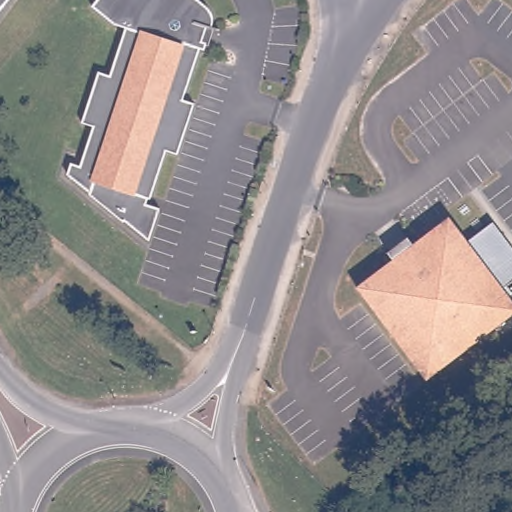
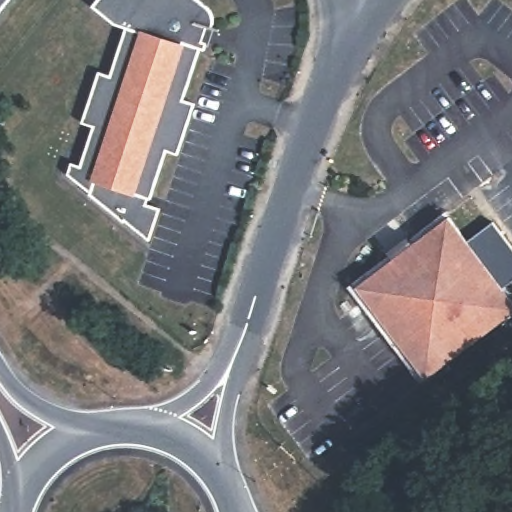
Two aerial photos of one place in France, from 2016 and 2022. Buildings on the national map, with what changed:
unchanged [(0,18),(0,0),(14,0),(0,18)]
unchanged [(121,35),(112,31),(100,22),(89,12),(99,0),(189,0),(207,14),(212,27),(209,34),(203,32),(199,46),(205,47),(202,55),(197,53),(181,105),(192,108),(185,130),(110,71),(121,35)]
unchanged [(163,155),(146,209),(158,214),(146,246),(87,200),(63,179),(68,168),(78,172),(91,132),(79,128),(96,77),(107,81),(110,71),(185,130),(175,159),(163,155)]
unchanged [(395,260),(393,257),(412,242),(415,245),(450,217),(469,241),(494,221),(512,243),(512,282),(506,287),(512,295),(512,315),(431,378),(359,288),(395,260)]

